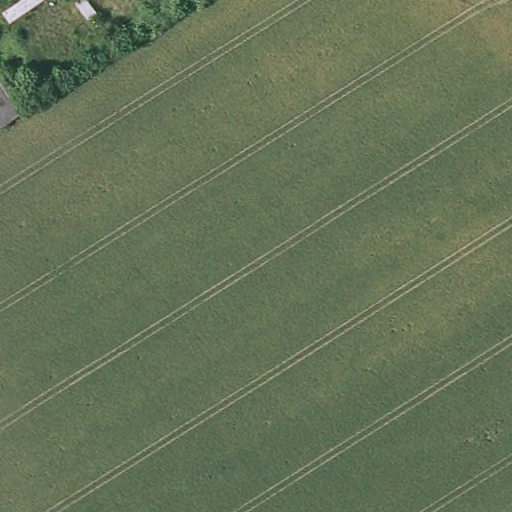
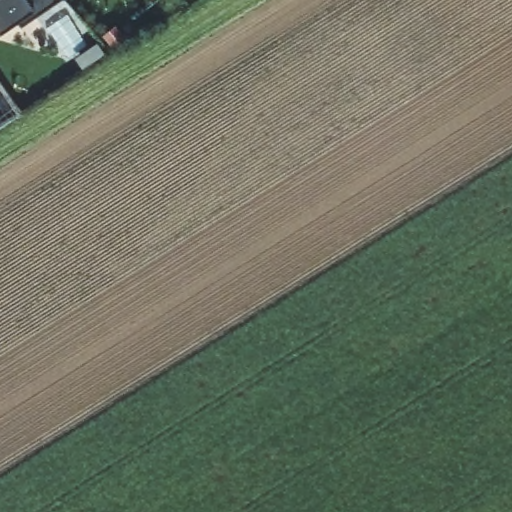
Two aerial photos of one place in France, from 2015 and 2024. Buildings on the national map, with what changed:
new [(2,32),(0,29),(0,0),(52,0),(2,32)]
unchanged [(0,123),(0,89),(16,113),(0,123)]

